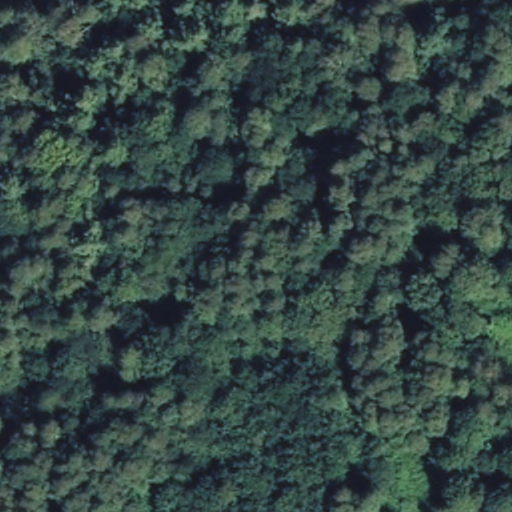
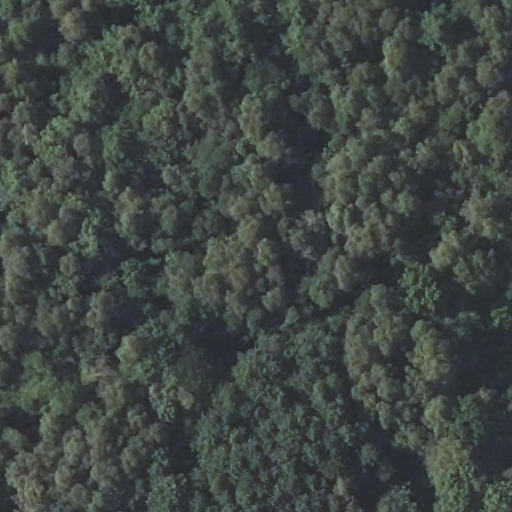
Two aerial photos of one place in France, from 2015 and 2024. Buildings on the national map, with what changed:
[]

